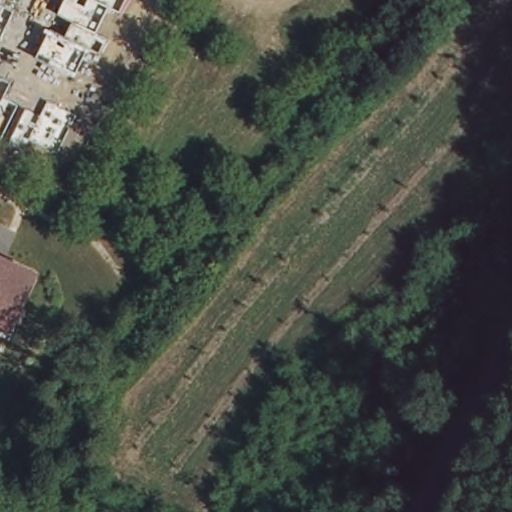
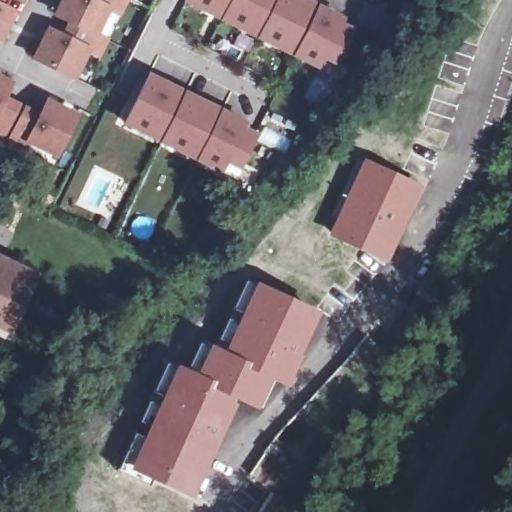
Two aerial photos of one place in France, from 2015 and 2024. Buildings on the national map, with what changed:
unchanged [(35,57),(47,30),(62,37),(71,21),(58,14),(65,0),(124,0),(118,13),(107,8),(95,35),(105,40),(98,55),(87,50),(74,75),(35,57)]
new [(346,15),(343,21),(355,26),(336,65),(327,60),(321,71),(182,3),(183,0),(314,0),(346,15)]
unchanged [(0,40),(0,4),(13,10),(0,40)]
new [(249,120),(246,125),(257,133),(240,170),(227,165),(223,174),(121,125),(147,72),(249,120)]
unchanged [(2,100),(16,105),(0,141),(0,77),(10,82),(2,100)]
unchanged [(30,142),(23,154),(8,146),(24,110),(39,117),(47,102),(75,115),(56,155),(30,142)]
new [(268,117),(296,129),(285,154),(256,139),(268,117)]
new [(361,158),(426,186),(388,266),(326,235),(361,158)]
unchanged [(14,333),(10,341),(0,337),(0,254),(41,273),(14,333)]
new [(133,429),(136,421),(155,382),(160,384),(173,361),(190,368),(200,350),(195,347),(200,339),(220,346),(226,335),(222,333),(236,312),(230,308),(237,292),(242,295),(244,292),(245,292),(252,279),(319,309),(284,387),(276,383),(262,410),(240,404),(229,420),(210,460),(213,461),(193,499),(116,468),(133,429)]

